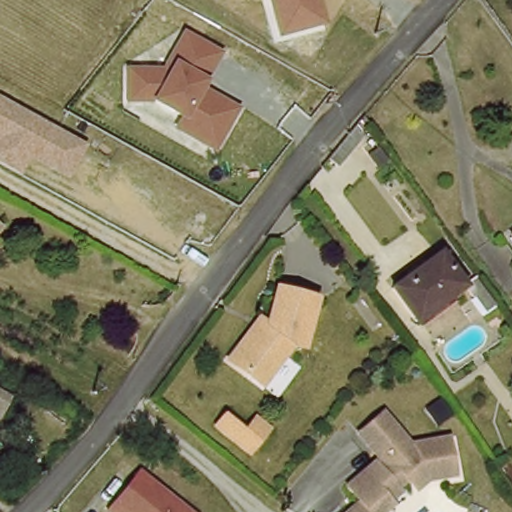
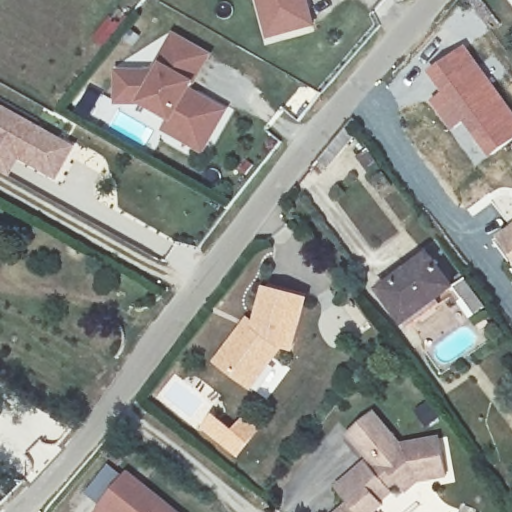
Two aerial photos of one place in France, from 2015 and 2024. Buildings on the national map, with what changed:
unchanged [(268,40),(257,0),(310,0),(317,28),(268,40)]
unchanged [(153,69),(175,34),(213,57),(199,83),(195,90),(232,110),(208,154),(167,132),(172,121),(142,106),(119,106),(118,70),(153,69)]
new [(465,45),(512,108),(512,140),(487,157),(462,125),(451,132),(430,103),(442,92),(428,73),(465,45)]
unchanged [(60,183),(22,162),(13,177),(0,170),(0,104),(78,149),(60,183)]
unchanged [(512,233),(512,253),(502,241),(512,233)]
unchanged [(429,256),(453,288),(407,324),(380,291),(429,256)]
unchanged [(225,338),(237,325),(255,327),(264,287),(310,297),(298,355),(284,351),(250,393),(218,365),(208,357),(225,338)]
unchanged [(352,501),(337,487),(353,471),(364,460),(370,465),(373,468),(380,462),(347,432),(370,410),(402,439),(440,438),(440,476),(412,477),(402,488),(392,479),(383,488),(387,492),(376,502),(379,506),(377,507),(383,512),(342,512),(352,501)]
unchanged [(203,428),(214,413),(236,431),(247,417),(265,430),(241,457),(203,428)]
unchanged [(127,470),(180,512),(96,512),(127,470)]

